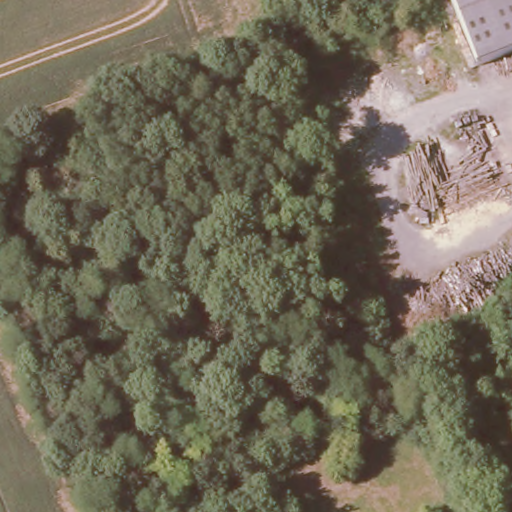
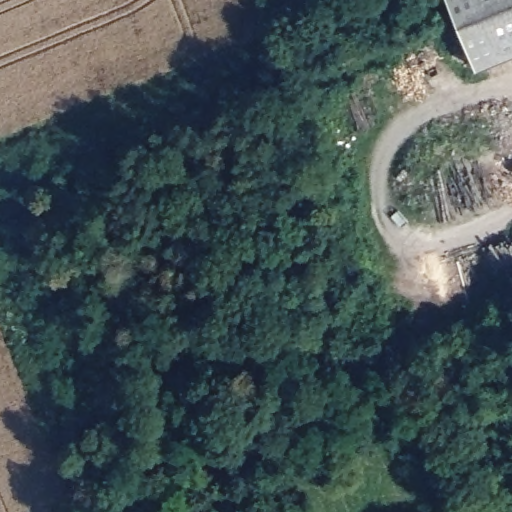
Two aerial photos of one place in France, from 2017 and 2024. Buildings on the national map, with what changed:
unchanged [(450,0),(512,0),(512,55),(478,69),(450,0)]

